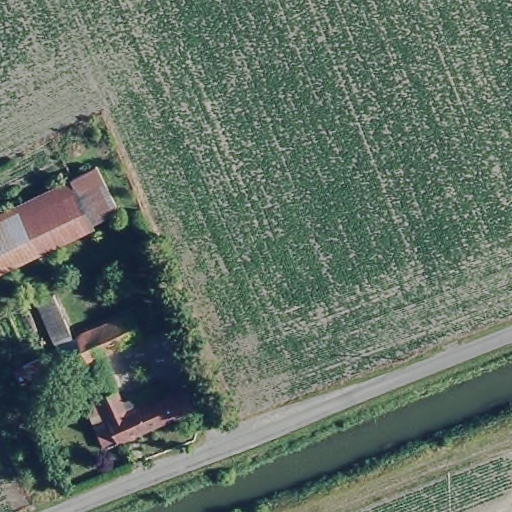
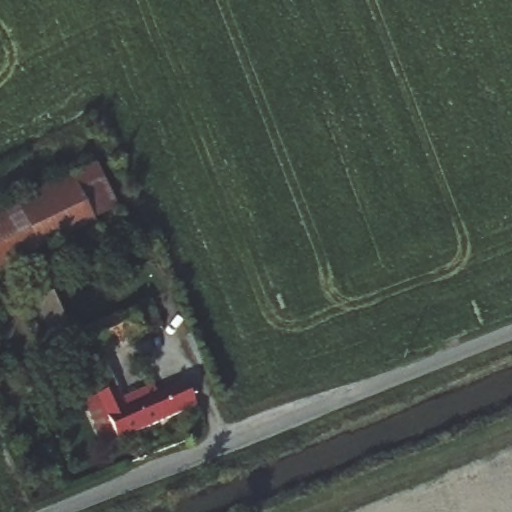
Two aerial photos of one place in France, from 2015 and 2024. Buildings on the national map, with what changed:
unchanged [(69,173),(93,162),(115,207),(91,219),(69,173)]
unchanged [(69,173),(91,219),(0,264),(0,207),(69,173)]
unchanged [(100,449),(80,403),(92,397),(78,362),(61,368),(32,298),(51,291),(67,335),(142,301),(153,327),(98,352),(118,402),(147,389),(152,397),(178,383),(190,408),(100,449)]
unchanged [(0,339),(0,326),(24,316),(39,354),(12,366),(0,339)]

